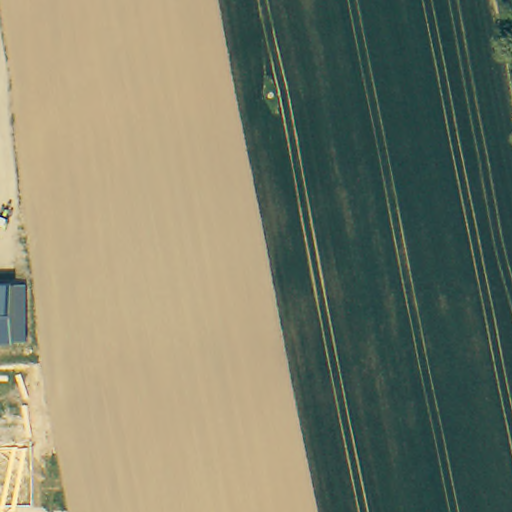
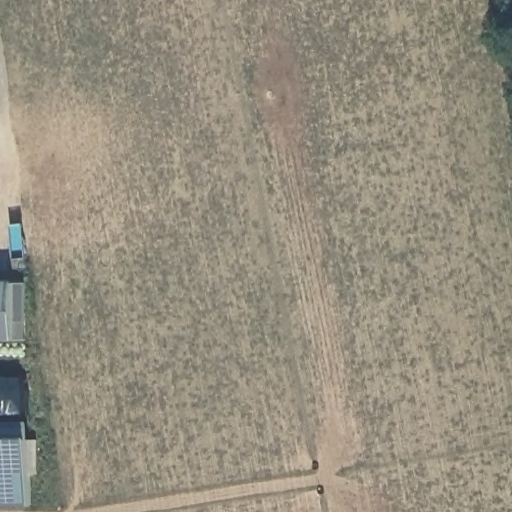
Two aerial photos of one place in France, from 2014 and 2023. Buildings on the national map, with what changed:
unchanged [(15,343),(0,343),(0,284),(13,284),(25,284),(26,341),(15,343)]
new [(27,423),(29,506),(0,507),(0,423),(27,423)]

